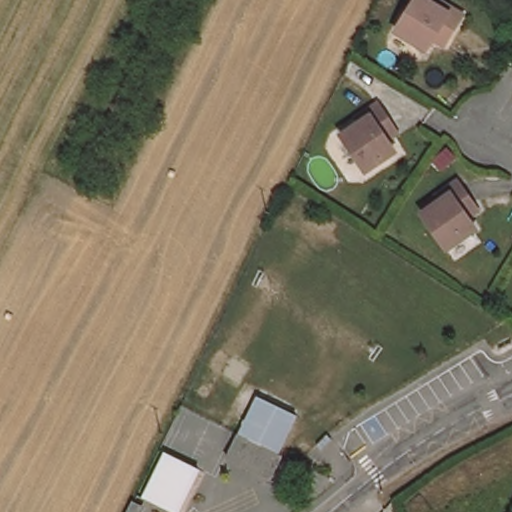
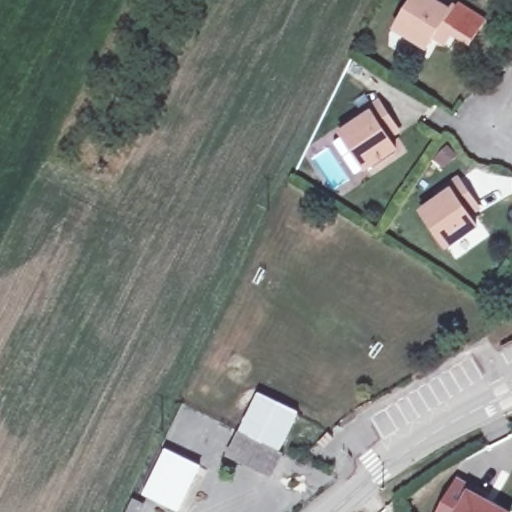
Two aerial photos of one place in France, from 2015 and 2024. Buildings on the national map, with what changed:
unchanged [(422,51),(392,31),(411,0),(421,0),(432,7),(436,2),(460,16),(457,22),(447,38),(441,47),(429,39),(422,51)]
unchanged [(366,168),(342,131),(362,119),(358,115),(384,99),(386,103),(397,120),(402,127),(389,135),(397,147),(366,168)]
unchanged [(482,211),(471,218),(479,231),(447,251),(424,216),(442,204),(439,199),(464,182),(467,188),(477,204),(482,211)]
unchanged [(257,407),(297,425),(280,463),(241,442),(257,407)]
unchanged [(204,471),(185,512),(181,512),(150,498),(169,453),(204,471)]
new [(460,479),(471,485),(468,492),(507,512),(440,512),(460,479)]

